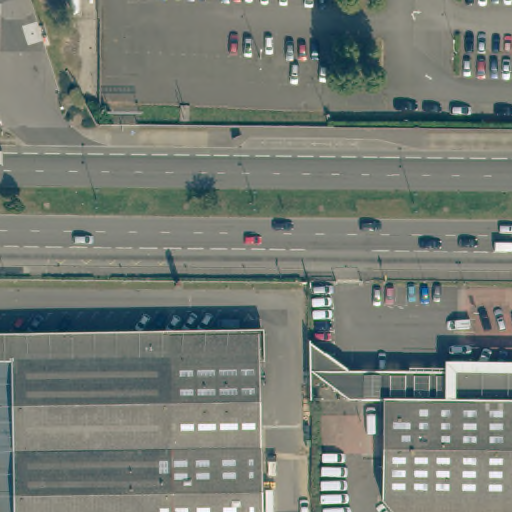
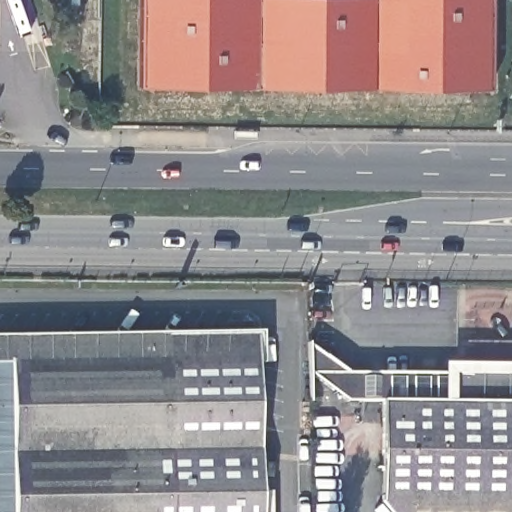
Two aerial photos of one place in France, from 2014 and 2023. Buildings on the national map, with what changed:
new [(139,0),(490,0),(490,87),(137,85),(139,0)]
unchanged [(257,359),(254,359),(257,442),(259,512),(0,512),(0,339),(257,335),(257,359)]
unchanged [(348,371),(452,372),(452,376),(452,402),(382,402),(361,401),(347,401),(310,373),(310,342),(348,371)]
unchanged [(452,402),(452,376),(467,376),(506,376),(512,376),(512,512),(392,512),(384,503),(383,503),(382,467),(361,467),(361,401),(382,402),(452,402)]

